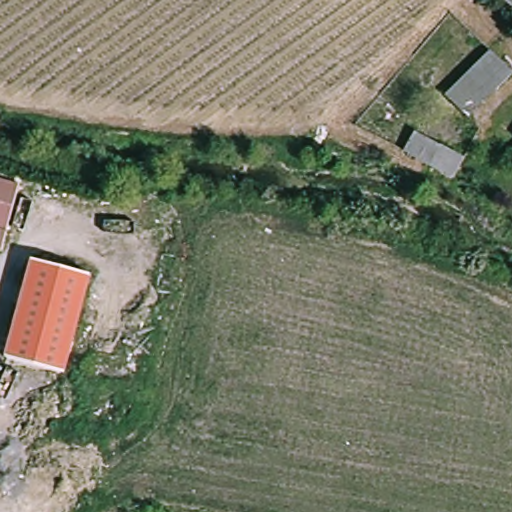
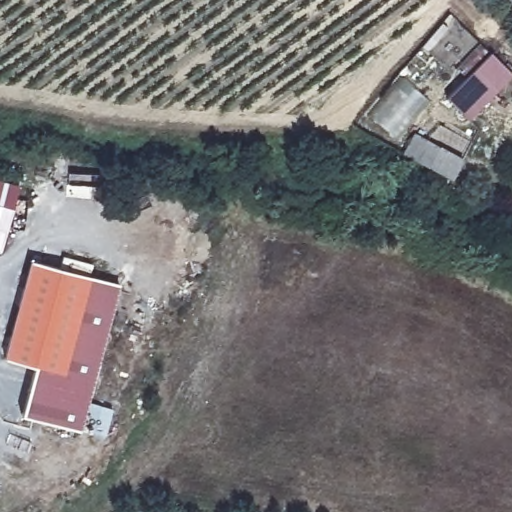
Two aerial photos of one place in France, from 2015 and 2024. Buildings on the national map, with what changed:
unchanged [(490,52),(512,76),(466,118),(445,95),(490,52)]
unchanged [(403,147),(415,129),(459,159),(448,177),(403,147)]
unchanged [(1,253),(0,253),(0,181),(19,186),(1,253)]
unchanged [(92,281),(60,377),(2,358),(35,261),(92,281)]
new [(81,431),(22,416),(34,368),(60,377),(92,281),(120,283),(81,431)]

